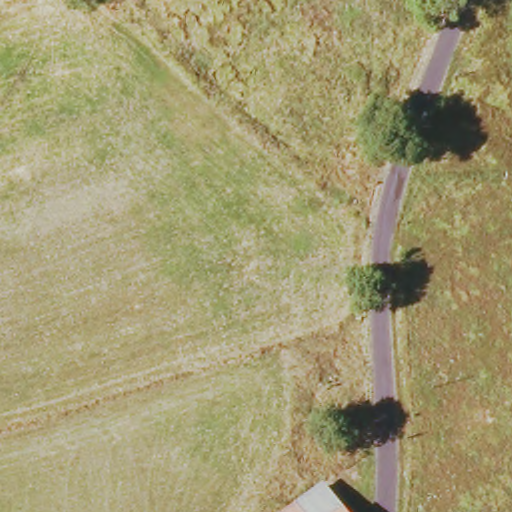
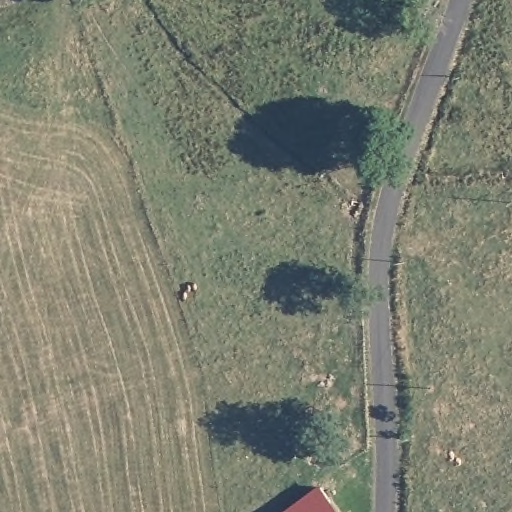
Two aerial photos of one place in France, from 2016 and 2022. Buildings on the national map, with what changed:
unchanged [(322,490),(341,512),(294,512),(322,490)]

